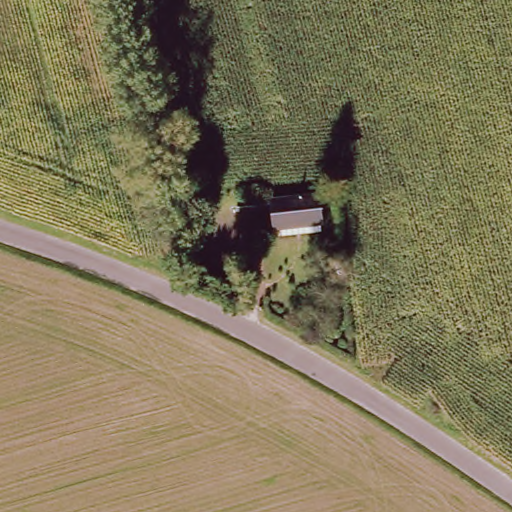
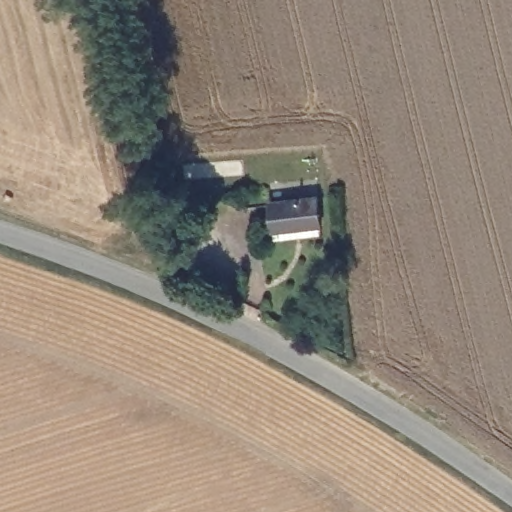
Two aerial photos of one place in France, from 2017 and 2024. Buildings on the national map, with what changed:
unchanged [(272,198),(321,194),(324,227),(276,232),(272,198)]

